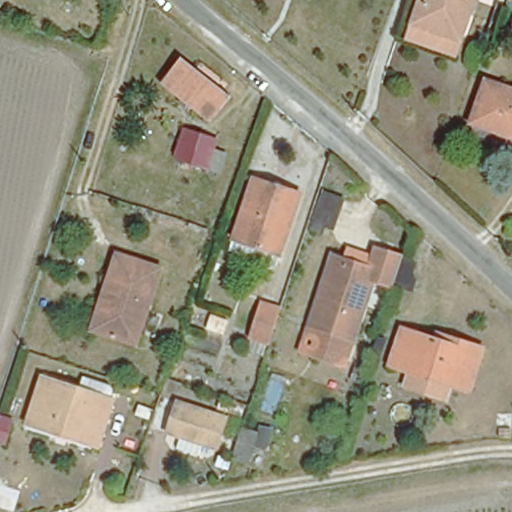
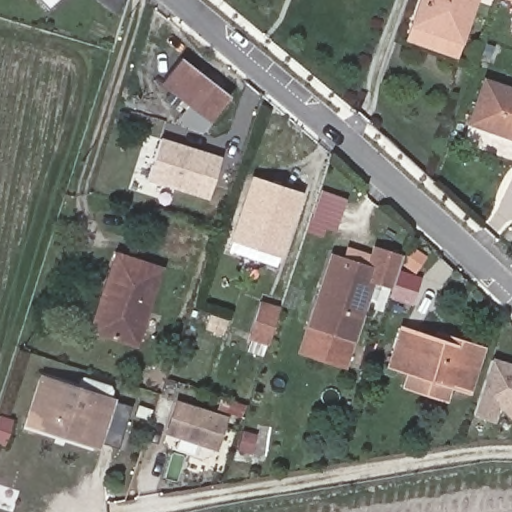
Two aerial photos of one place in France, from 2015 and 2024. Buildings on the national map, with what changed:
unchanged [(414,21),(413,20),(420,0),(473,0),(461,37),(456,51),(408,35),(414,21)]
unchanged [(512,0),(512,2),(508,0),(512,0)]
unchanged [(231,91),(211,116),(161,78),(181,53),(231,91)]
unchanged [(481,79),(512,90),(512,139),(466,122),(481,79)]
demolished [(215,139),(212,150),(227,154),(221,172),(176,160),(184,131),(215,139)]
new [(147,180),(161,139),(221,158),(207,200),(147,180)]
unchanged [(229,250),(253,179),(274,186),(300,195),(296,205),(276,265),(229,250)]
unchanged [(307,330),(331,257),(342,261),(346,251),(365,257),(361,267),(368,270),(375,251),(402,260),(392,293),(372,286),(352,345),(307,330)]
unchanged [(133,345),(95,330),(106,302),(103,301),(114,273),(111,272),(117,253),(160,268),(133,345)]
unchanged [(260,305),(280,312),(267,351),(247,343),(260,305)]
unchanged [(434,335),(436,330),(481,343),(469,385),(387,360),(399,324),(434,335)]
unchanged [(343,370),(299,356),(307,330),(352,345),(343,370)]
new [(495,422),(474,416),(492,357),(512,363),(512,422),(500,407),(495,422)]
unchanged [(26,430),(30,417),(43,378),(110,400),(97,440),(94,452),(26,430)]
unchanged [(218,451),(171,435),(181,406),(227,422),(218,451)]
unchanged [(0,444),(0,415),(14,420),(11,430),(6,446),(0,444)]
demolished [(256,432),(257,425),(273,430),(267,452),(254,447),(249,467),(234,463),(244,430),(256,432)]

